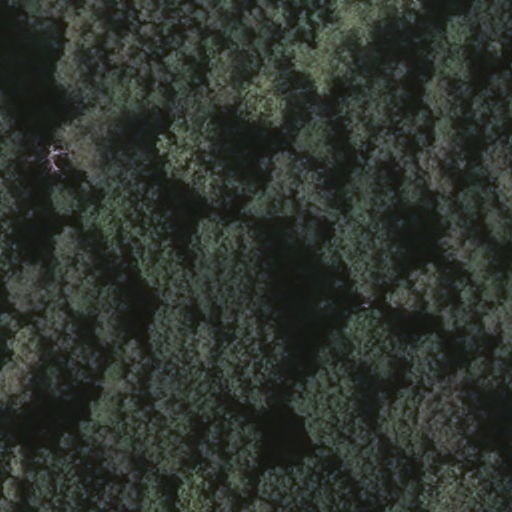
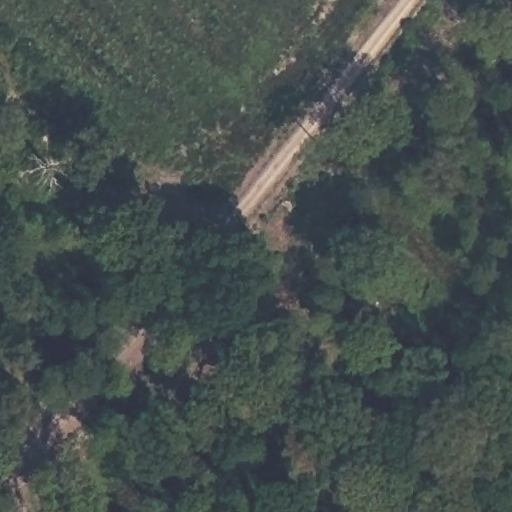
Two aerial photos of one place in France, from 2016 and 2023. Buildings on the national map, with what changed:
unchanged [(121,236),(152,261),(138,275),(111,250),(121,236)]

